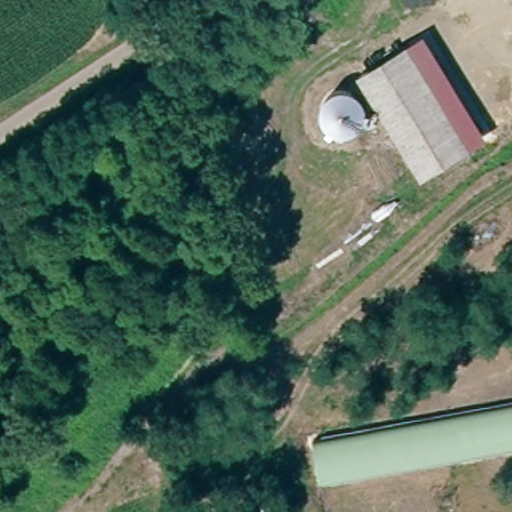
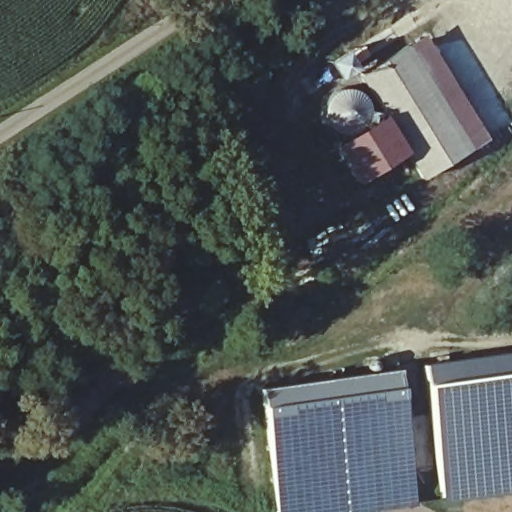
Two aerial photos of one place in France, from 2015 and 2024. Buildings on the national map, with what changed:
unchanged [(424,34),(487,138),(472,147),(408,44),(424,34)]
unchanged [(472,147),(422,179),(357,74),(408,44),(472,147)]
new [(354,179),(330,139),(337,134),(355,133),(367,122),(368,116),(380,111),(403,148),(354,179)]
new [(421,363),(512,351),(512,491),(440,501),(421,363)]
new [(278,512),(260,389),(397,368),(417,502),(352,512),(278,512)]
demolished [(312,441),(512,405),(512,449),(320,483),(312,441)]

